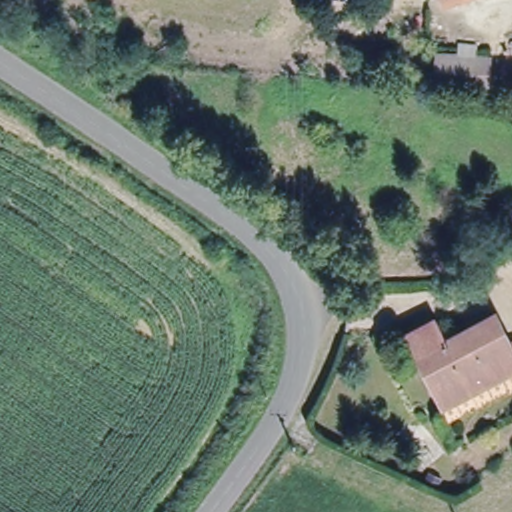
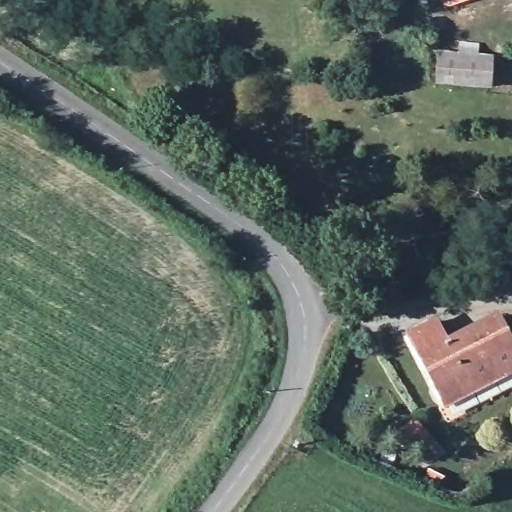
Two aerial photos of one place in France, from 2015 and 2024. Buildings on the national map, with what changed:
unchanged [(437,82),(437,53),(487,56),(486,84),(437,82)]
unchanged [(512,338),(512,372),(447,404),(409,331),(431,318),(445,338),(500,313),(512,338)]

